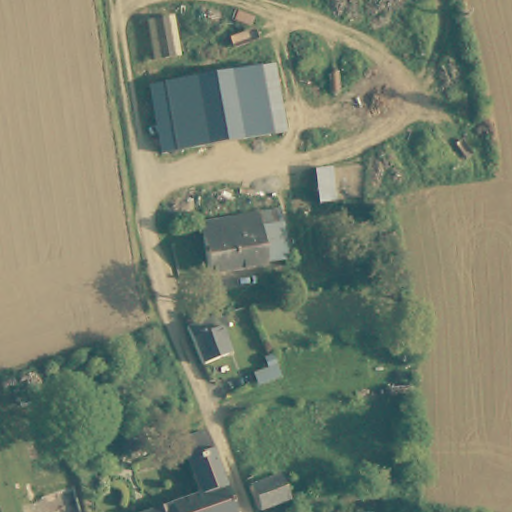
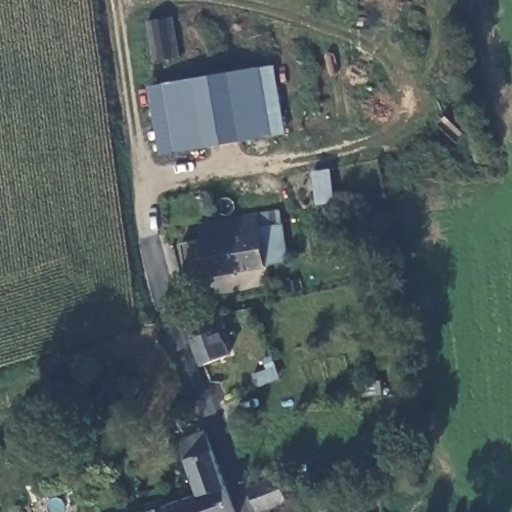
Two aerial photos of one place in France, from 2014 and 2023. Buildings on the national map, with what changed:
unchanged [(180,59),(151,62),(144,20),(174,15),(180,59)]
unchanged [(287,134),(159,156),(146,86),(274,65),(287,134)]
unchanged [(283,206),(284,213),(292,255),(270,260),(262,217),(260,211),(283,206)]
unchanged [(262,217),(270,260),(270,262),(215,273),(207,236),(206,220),(260,211),(262,217)]
unchanged [(239,317),(244,332),(237,334),(246,361),(212,372),(200,332),(209,327),(239,317)]
unchanged [(205,427),(209,437),(224,482),(201,492),(199,493),(180,439),(205,427)]
unchanged [(136,461),(128,445),(149,436),(157,451),(136,461)]
unchanged [(276,512),(265,512),(255,490),(293,477),(301,503),(276,512)]
unchanged [(193,495),(199,493),(201,492),(224,482),(235,512),(153,512),(177,502),(193,495)]

